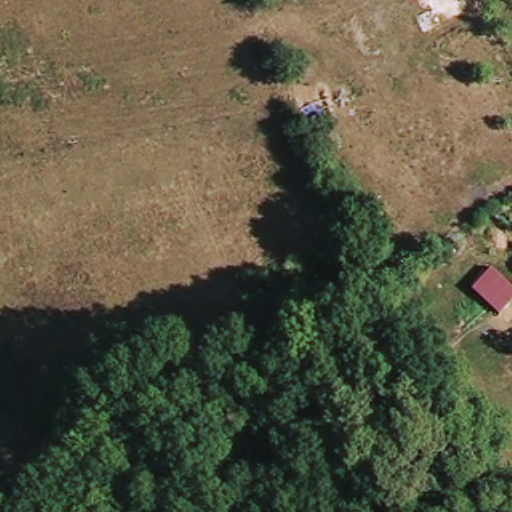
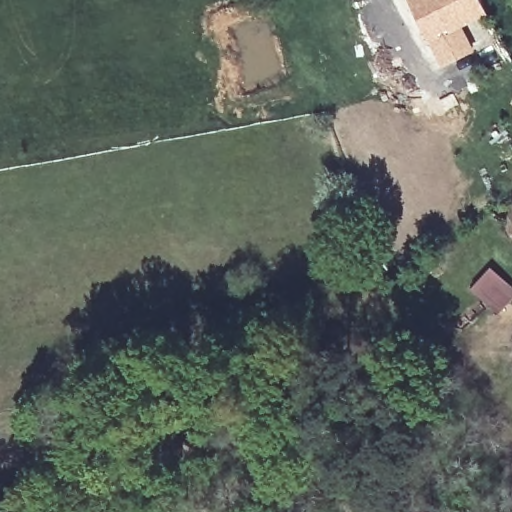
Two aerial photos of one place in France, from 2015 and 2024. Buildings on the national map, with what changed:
demolished [(425,33),(409,0),(481,0),(483,5),(425,33)]
new [(474,52),(442,68),(430,40),(410,0),(480,0),(488,15),(462,26),(474,52)]
new [(490,267),(512,285),(512,301),(498,315),(470,289),(490,267)]

